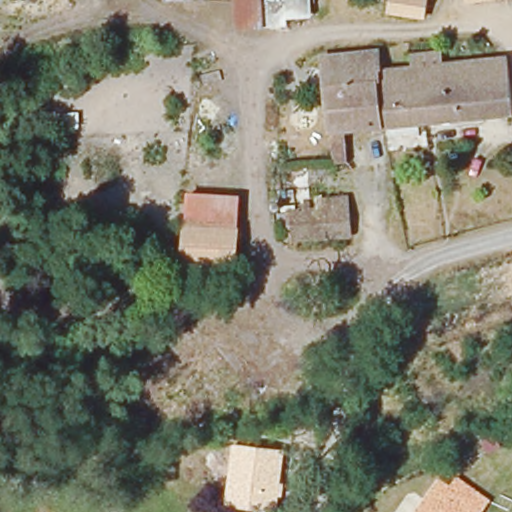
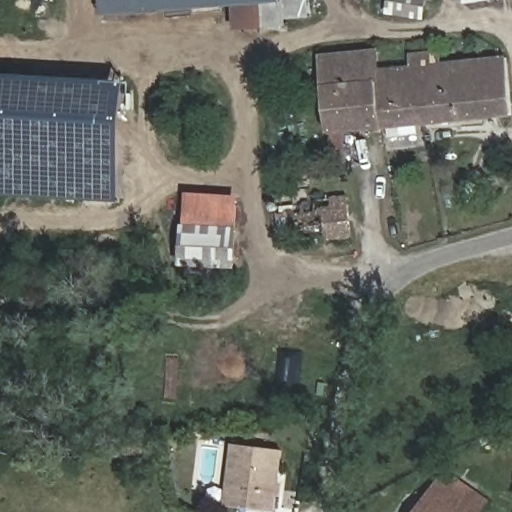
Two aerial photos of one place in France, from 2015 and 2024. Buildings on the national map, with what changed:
new [(287,22),(285,31),(234,32),(233,9),(102,15),(101,0),(307,0),(308,21),(287,22)]
unchanged [(463,6),(463,0),(493,0),(493,1),(463,6)]
unchanged [(493,0),(502,0),(493,1),(493,0)]
unchanged [(392,1),(425,7),(422,27),(388,22),(392,1)]
demolished [(278,21),(279,30),(259,32),(257,5),(304,2),(305,19),(278,21)]
unchanged [(330,133),(321,57),(374,53),(375,70),(409,67),(408,53),(441,50),(443,64),(507,58),(512,106),(512,116),(343,132),(344,152),(331,153),(330,133)]
new [(123,81),(116,198),(0,192),(0,73),(123,81)]
unchanged [(185,188),(237,191),(236,200),(235,218),(220,217),(184,215),(185,188)]
unchanged [(318,212),(318,206),(348,203),(351,240),(321,243),(318,212)]
unchanged [(202,263),(203,252),(182,251),(184,215),(220,217),(235,218),(233,254),(232,254),(231,264),(202,263)]
unchanged [(285,452),(280,483),(285,484),(283,497),(279,497),(277,512),(256,512),(224,507),(232,444),(285,452)]
unchanged [(426,509),(422,506),(437,484),(439,482),(449,489),(456,479),(487,501),(479,512),(424,512),(426,509)]

